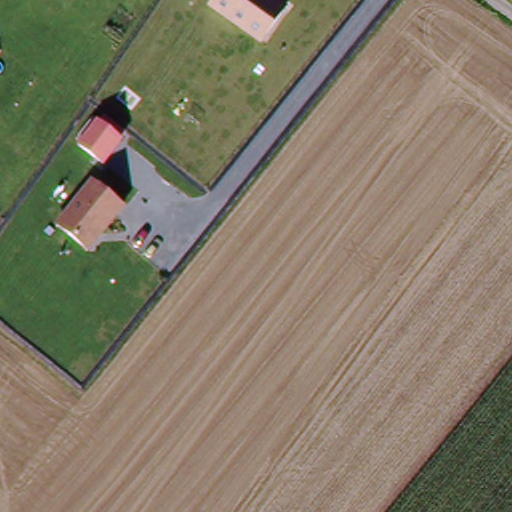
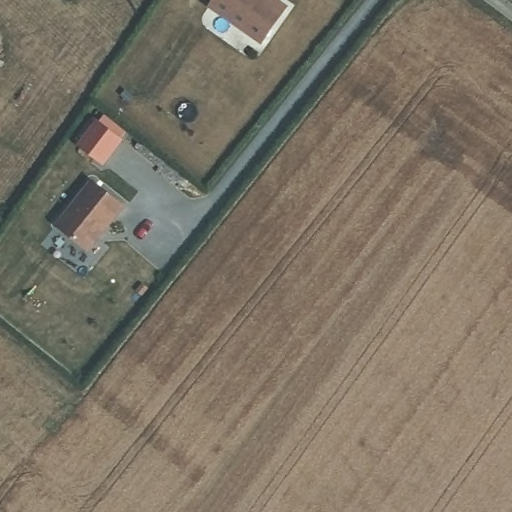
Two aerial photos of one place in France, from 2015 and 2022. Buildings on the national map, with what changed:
unchanged [(209,0),(276,0),(285,7),(260,45),(204,7),(209,0)]
unchanged [(123,138),(105,163),(79,144),(98,119),(123,138)]
unchanged [(124,206),(87,254),(51,225),(89,178),(124,206)]

